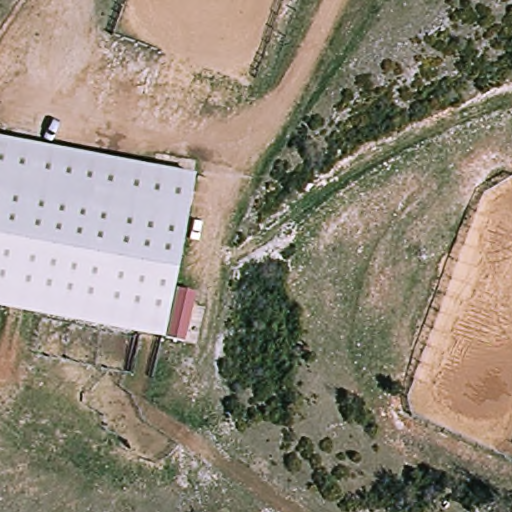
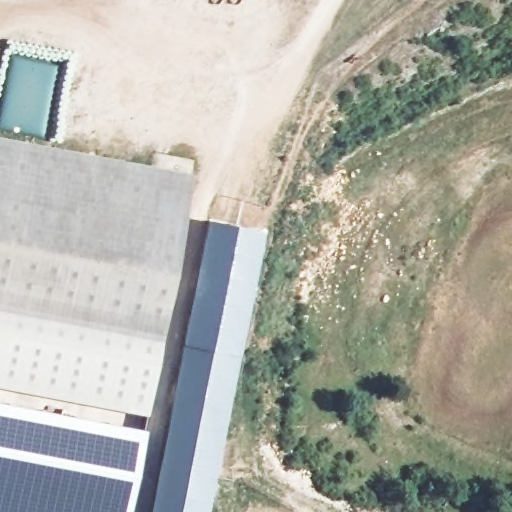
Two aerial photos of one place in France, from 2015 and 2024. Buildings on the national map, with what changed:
unchanged [(195,175),(186,224),(164,341),(0,311),(0,138),(195,175)]
new [(151,512),(208,219),(264,230),(209,512),(151,512)]
new [(150,415),(0,388),(0,311),(164,341),(150,415)]
new [(0,512),(0,400),(146,428),(130,512),(0,512)]

